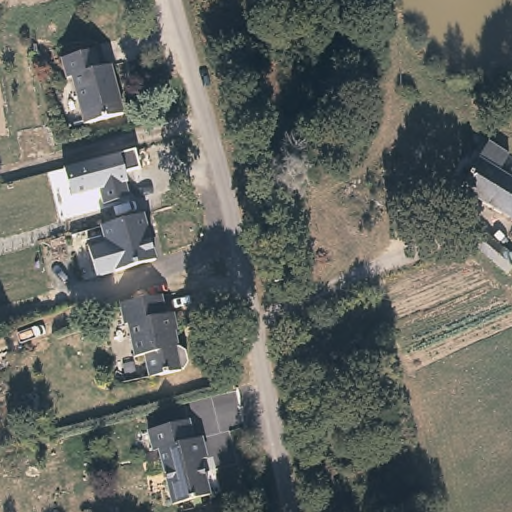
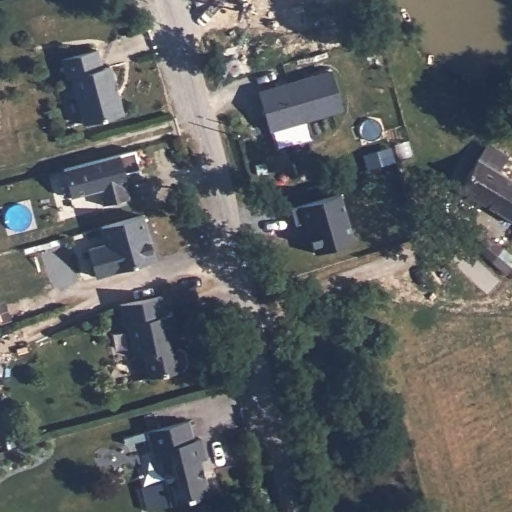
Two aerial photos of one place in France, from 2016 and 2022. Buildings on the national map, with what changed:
unchanged [(99,70),(109,67),(121,115),(82,125),(71,77),(66,78),(61,59),(95,50),(99,70)]
new [(331,68),(342,110),(268,131),(256,89),(331,68)]
unchanged [(139,168),(126,172),(128,183),(126,184),(129,198),(104,205),(100,190),(72,196),(65,169),(134,150),(139,168)]
unchanged [(512,180),(512,217),(458,187),(476,159),(512,180)]
new [(298,204),(338,194),(352,241),(312,254),(303,221),(292,225),(287,206),(298,204)]
unchanged [(116,271),(98,277),(89,249),(105,245),(101,226),(145,215),(156,260),(116,271)]
unchanged [(502,247),(493,259),(467,240),(477,229),(502,247)]
unchanged [(117,304),(158,292),(163,310),(169,309),(172,320),(125,333),(117,304)]
unchanged [(172,320),(174,327),(167,330),(172,348),(176,348),(180,351),(182,356),(182,361),(180,365),(176,367),(176,370),(147,378),(141,356),(132,358),(125,333),(172,320)]
unchanged [(197,443),(206,441),(209,459),(204,460),(213,498),(175,508),(162,454),(157,455),(150,433),(192,423),(197,443)]

